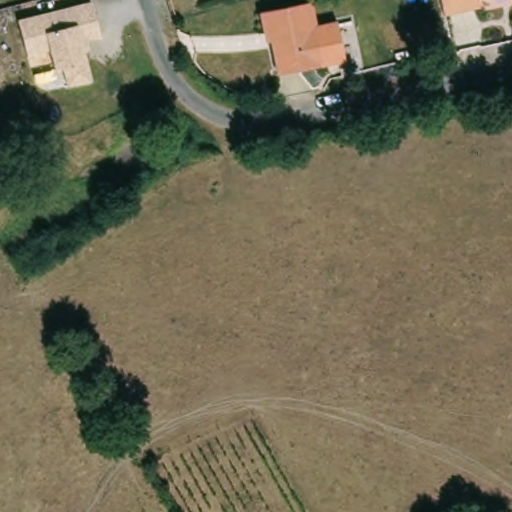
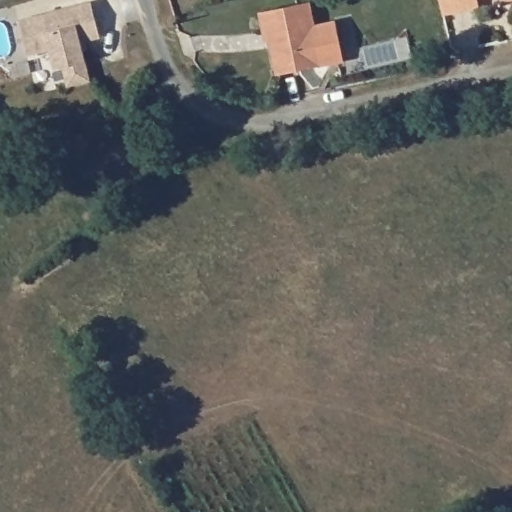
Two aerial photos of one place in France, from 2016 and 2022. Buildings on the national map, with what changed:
unchanged [(439,12),(437,0),(475,0),(475,6),(439,12)]
unchanged [(330,22),(339,61),(333,62),(316,65),(294,70),(272,74),(263,34),(259,35),(255,12),(303,4),(308,26),(329,22),(330,22)]
unchanged [(80,55),(86,85),(63,90),(59,70),(51,72),(46,52),(24,57),(16,22),(89,6),(97,42),(83,45),(84,54),(80,55)]

